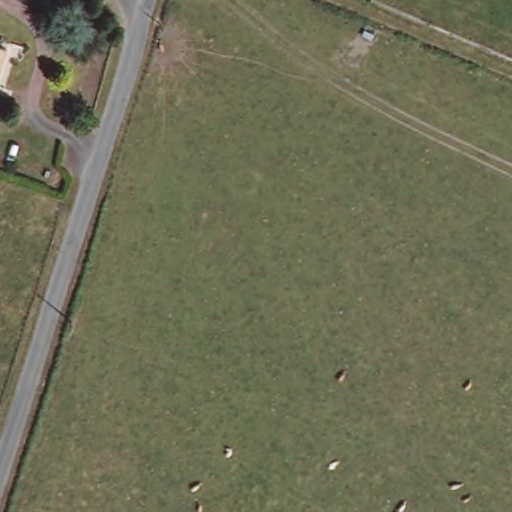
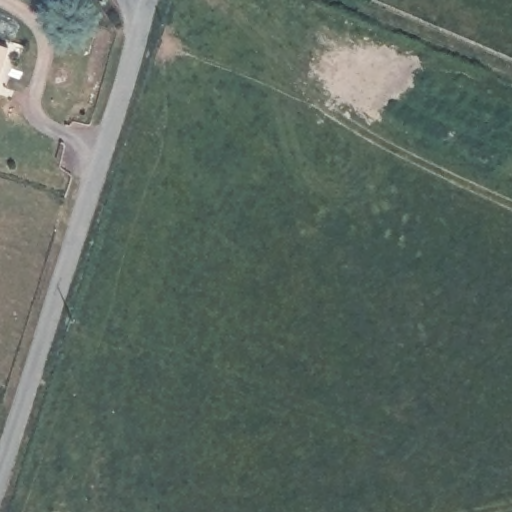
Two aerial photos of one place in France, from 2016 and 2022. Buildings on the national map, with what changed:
unchanged [(7,47),(0,71),(0,45),(7,47)]

